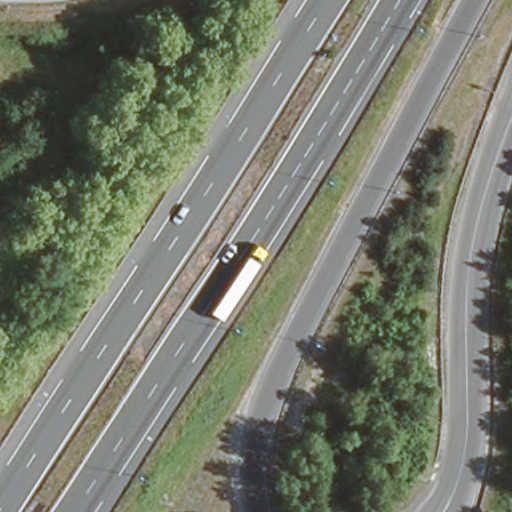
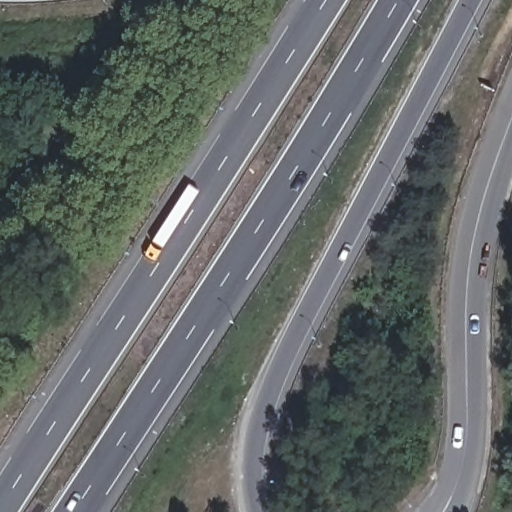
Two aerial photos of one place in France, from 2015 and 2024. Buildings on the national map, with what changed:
[]

